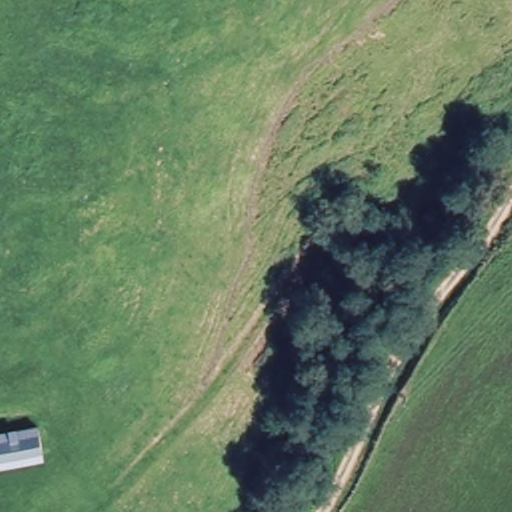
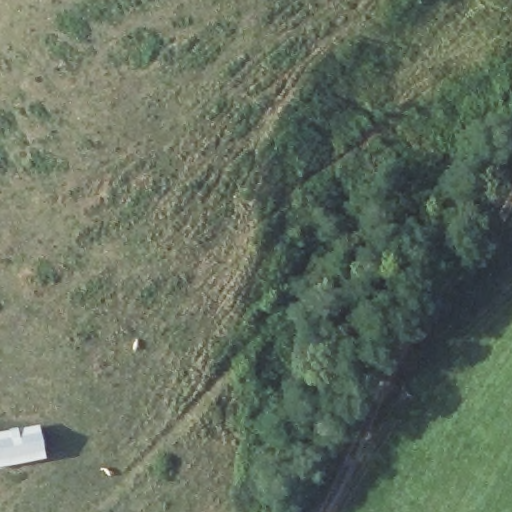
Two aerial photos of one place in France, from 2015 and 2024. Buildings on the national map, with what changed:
unchanged [(42,462),(0,472),(0,432),(33,423),(42,462)]

